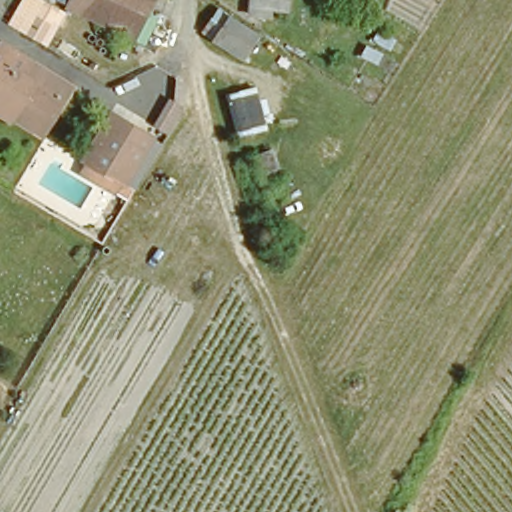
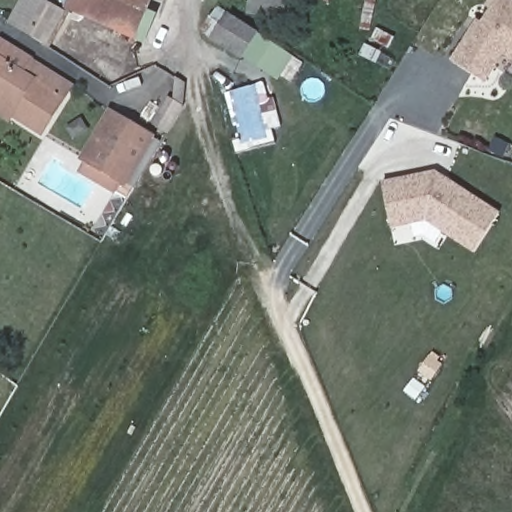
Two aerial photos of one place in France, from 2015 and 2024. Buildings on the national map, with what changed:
new [(8,24),(22,0),(44,0),(65,12),(46,46),(8,24)]
unchanged [(64,8),(68,0),(143,0),(127,35),(64,8)]
unchanged [(256,12),(247,12),(249,0),(282,0),(281,4),(258,2),(256,12)]
new [(502,53),(484,80),(453,60),(472,30),(477,22),(482,25),(477,33),(493,9),(488,5),(491,0),(508,0),(512,2),(512,59),(502,53)]
unchanged [(240,56),(206,34),(223,10),(255,32),(282,51),(268,72),(240,56)]
unchanged [(67,88),(59,100),(38,132),(9,112),(3,120),(0,117),(0,43),(21,57),(67,88)]
new [(237,155),(233,140),(238,139),(227,95),(258,86),(274,144),(237,155)]
unchanged [(84,155),(109,114),(149,137),(159,142),(134,185),(122,177),(84,155)]
new [(387,215),(381,179),(434,169),(497,211),(472,249),(423,217),(407,220),(389,224),(387,215)]

